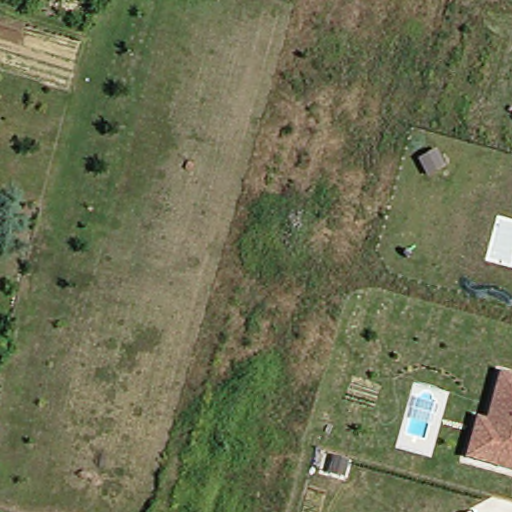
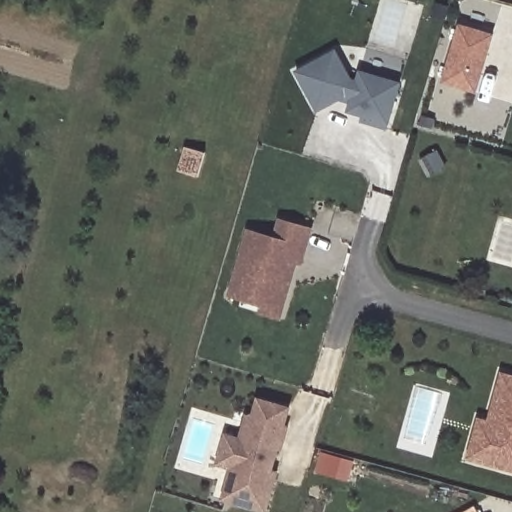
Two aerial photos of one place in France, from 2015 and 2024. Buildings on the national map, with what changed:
new [(460,23),(495,34),(476,94),(442,83),(460,23)]
new [(335,51),(351,80),(357,81),(360,71),(400,83),(385,129),(362,121),(363,116),(348,111),(351,103),(339,99),(317,111),(296,71),(335,51)]
new [(229,298),(248,232),(272,238),(277,220),(311,230),(301,264),(296,263),(290,284),(284,303),(280,318),(259,312),(261,307),(229,298)]
unchanged [(478,417),(488,420),(502,372),(512,375),(512,470),(496,466),(467,457),(478,417)]
new [(273,481),(265,512),(223,499),(213,497),(222,465),(218,464),(226,435),(231,437),(235,420),(245,423),(248,415),(253,416),(258,400),(289,408),(284,425),(288,427),(281,451),(277,450),(271,470),(276,472),(273,481)]

